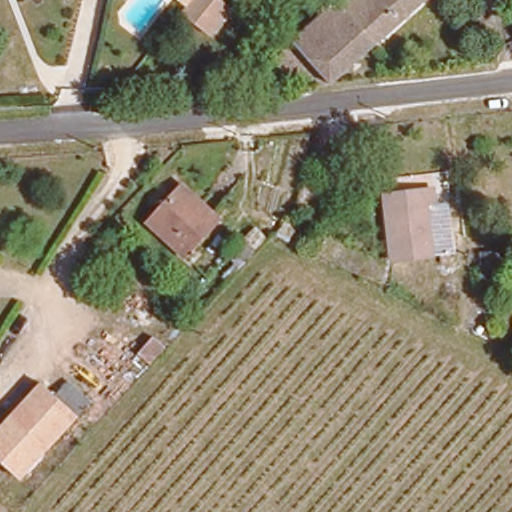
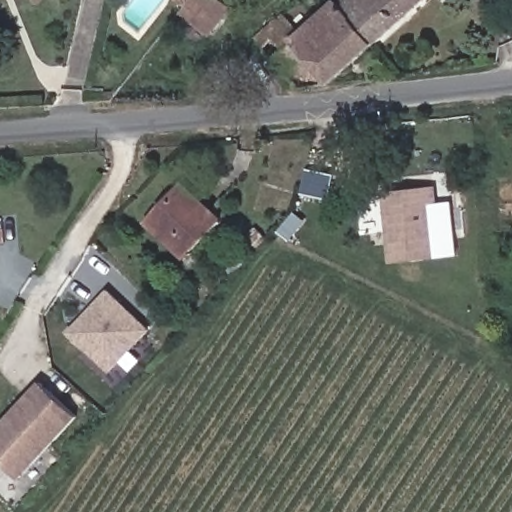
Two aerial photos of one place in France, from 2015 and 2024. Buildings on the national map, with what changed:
unchanged [(209,38),(179,12),(184,2),(181,0),(222,0),(233,8),(209,38)]
unchanged [(328,0),(423,0),(368,50),(325,3),(328,0)]
unchanged [(299,93),(247,46),(291,4),(305,20),(325,3),(368,50),(321,92),(299,93)]
unchanged [(146,218),(154,210),(181,186),(218,224),(194,249),(185,258),(146,218)]
unchanged [(438,207),(428,209),(433,252),(393,257),(385,194),(436,187),(438,207)]
new [(151,329),(132,350),(141,360),(131,371),(121,362),(111,373),(68,332),(108,289),(151,329)]
unchanged [(17,478),(0,463),(0,427),(41,383),(75,416),(17,478)]

